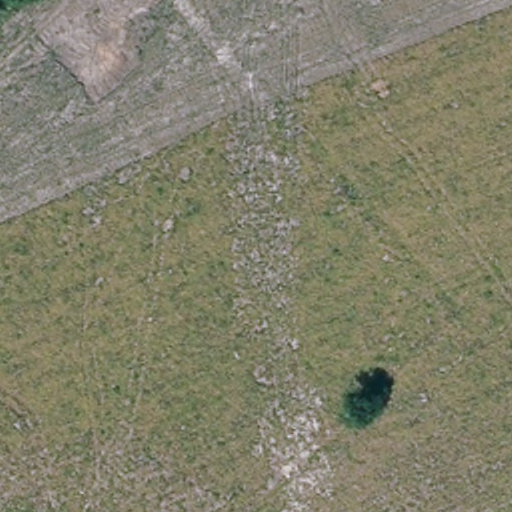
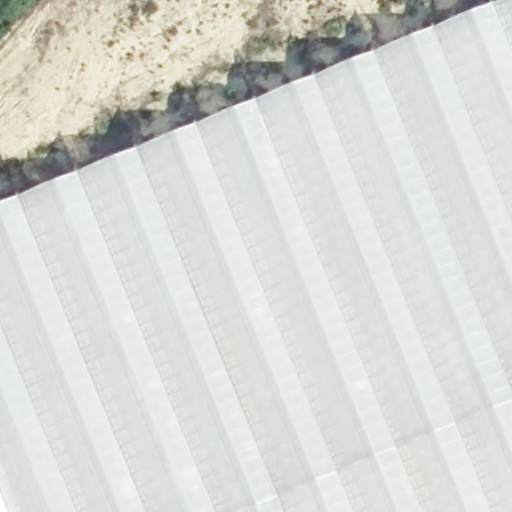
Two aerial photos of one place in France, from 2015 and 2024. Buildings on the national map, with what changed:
new [(0,512),(0,203),(501,0),(512,0),(512,512),(0,512)]

